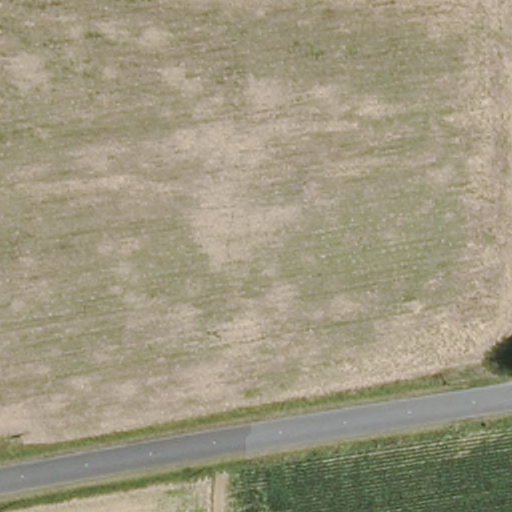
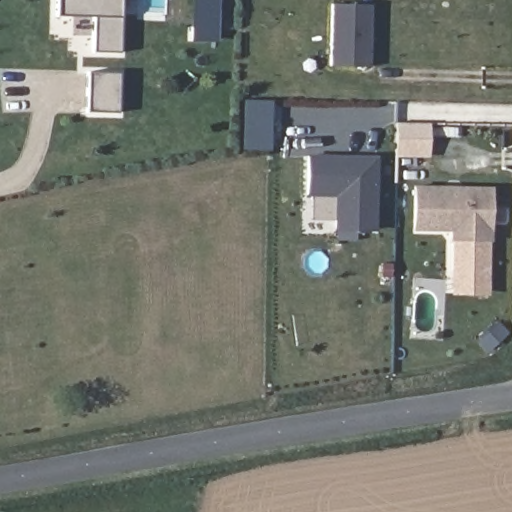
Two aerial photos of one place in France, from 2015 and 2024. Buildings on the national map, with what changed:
new [(56,0),(120,0),(119,52),(91,52),(93,17),(56,17),(56,0)]
new [(191,0),(218,0),(217,42),(191,42),(191,0)]
new [(370,67),(330,66),(331,3),(371,4),(370,67)]
new [(118,113),(86,113),(86,70),(118,72),(118,113)]
new [(243,150),(244,101),(271,102),(270,151),(243,150)]
new [(396,158),(396,124),(430,124),(429,159),(396,158)]
new [(375,230),(334,230),(334,196),(306,196),(307,152),(376,155),(375,230)]
new [(492,187),(490,242),(449,240),(450,232),(412,231),(413,185),(492,187)]
new [(488,242),(487,295),(450,294),(452,240),(488,242)]

